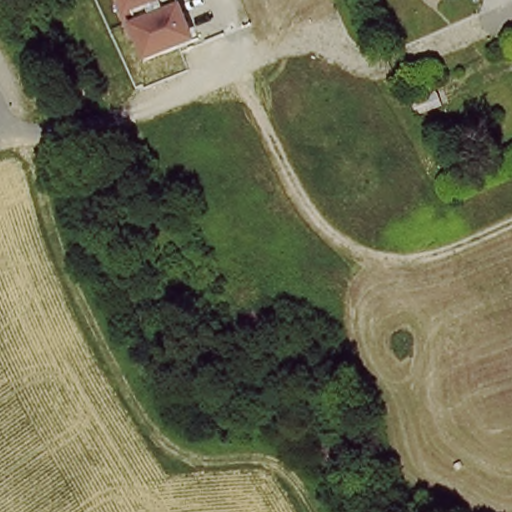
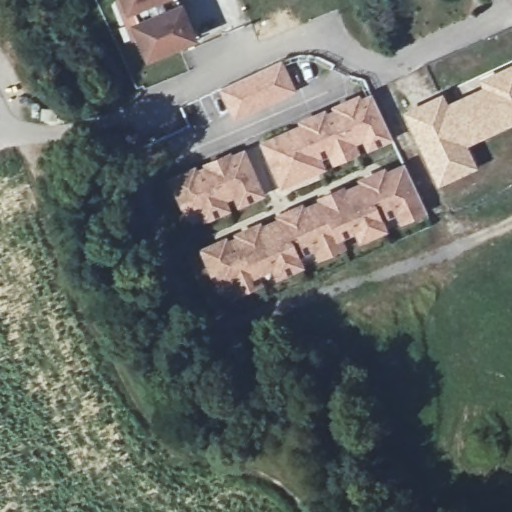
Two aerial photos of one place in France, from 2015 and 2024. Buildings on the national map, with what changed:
unchanged [(183,0),(198,40),(148,60),(122,0),(183,0)]
new [(280,62),(293,90),(235,117),(222,89),(280,62)]
new [(481,170),(441,189),(404,113),(444,95),(447,104),(483,90),(479,79),(512,64),(512,128),(471,146),(481,170)]
new [(302,124),(316,117),(324,114),(326,117),(338,112),(336,109),(351,102),(358,99),(360,102),(373,97),(392,137),(370,147),(365,137),(352,143),(357,153),(335,162),(331,152),(318,158),(322,168),(282,186),(264,145),(303,127),(302,124)]
new [(195,170),(196,175),(208,169),(207,165),(221,159),(229,155),(231,160),(244,154),(262,195),(240,205),(236,194),(223,200),(228,210),(206,220),(202,209),(188,215),(173,180),(187,174),(195,170)]
new [(240,240),(238,236),(252,230),(260,226),(262,230),(282,221),(280,217),(295,211),(302,208),(304,211),(323,204),(321,200),(335,194),(343,190),(345,194),(364,185),(362,181),(377,175),(384,172),(386,175),(406,167),(426,211),(403,221),(398,211),(380,220),(384,230),(361,240),(357,230),(339,237),(344,247),(321,257),(316,247),(297,256),(302,266),(279,276),(274,266),(256,274),(260,284),(239,293),(234,283),(221,290),(204,251),(218,245),(226,241),(228,245),(240,240)]

